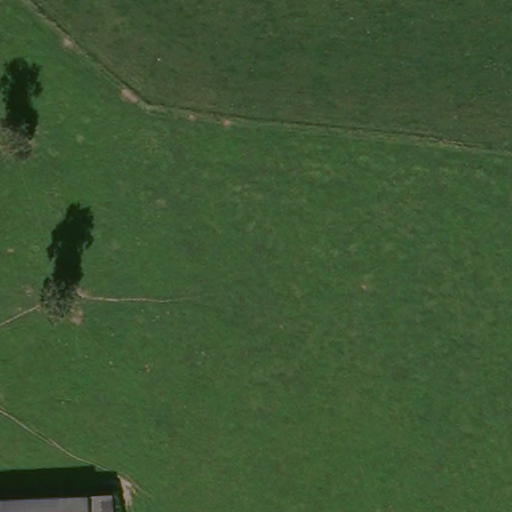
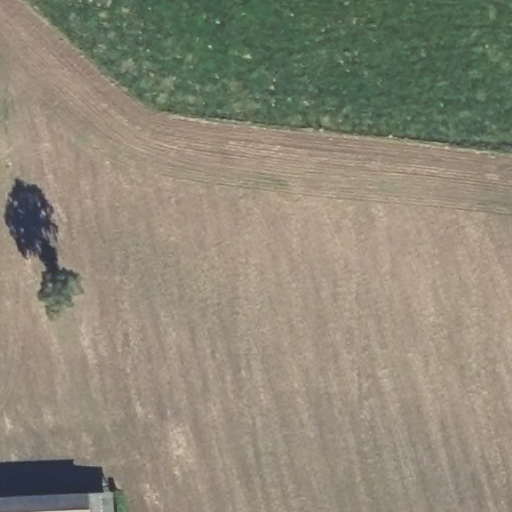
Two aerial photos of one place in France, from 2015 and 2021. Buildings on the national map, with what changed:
unchanged [(110,499),(112,512),(58,512),(58,501),(110,499)]
unchanged [(58,501),(58,512),(0,512),(0,502),(58,501)]

